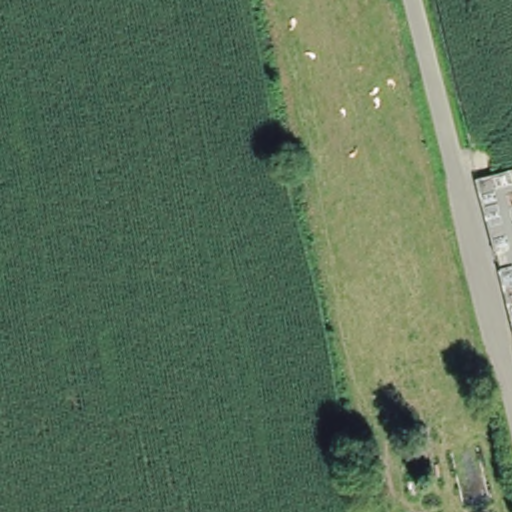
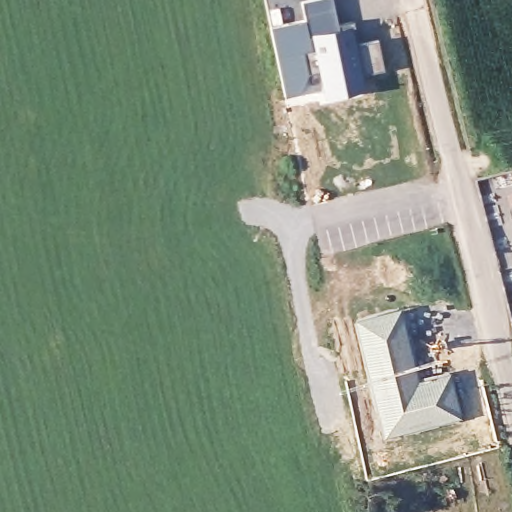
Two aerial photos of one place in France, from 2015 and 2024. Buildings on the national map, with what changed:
new [(305,0),(333,0),(339,25),(332,27),(309,34),(305,18),(301,1),(305,0)]
new [(305,18),(309,34),(313,55),(307,57),(309,94),(283,99),(268,27),(305,18)]
new [(352,20),(357,41),(378,38),(385,71),(364,76),(367,93),(346,95),(332,27),(339,25),(352,20)]
new [(332,27),(346,95),(323,97),(313,55),(309,34),(332,27)]
new [(402,307),(415,365),(432,361),(435,374),(452,370),(463,420),(383,440),(370,395),(352,318),(402,307)]

